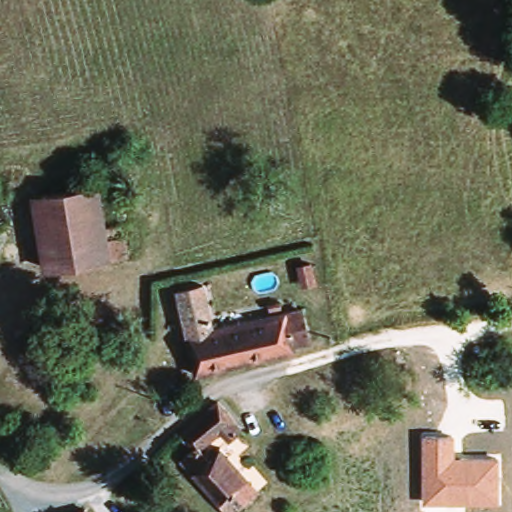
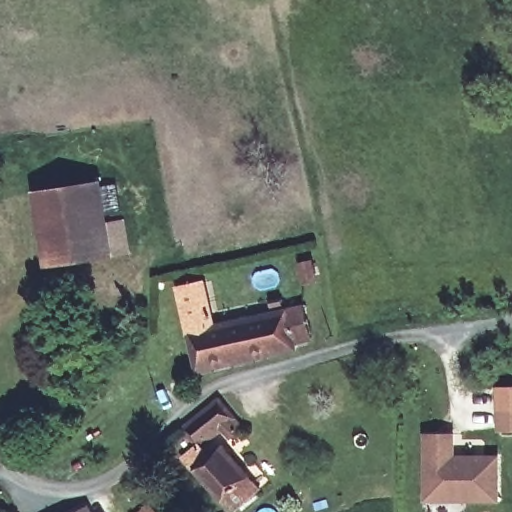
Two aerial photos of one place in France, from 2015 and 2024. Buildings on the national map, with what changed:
unchanged [(36,265),(39,262),(35,229),(32,195),(104,190),(105,229),(127,228),(130,258),(36,265)]
unchanged [(310,352),(213,369),(194,374),(180,297),(205,294),(213,326),(301,310),(310,352)]
new [(512,385),(512,433),(495,434),(493,386),(512,385)]
unchanged [(258,501),(235,512),(218,512),(180,445),(194,438),(190,427),(193,423),(225,407),(236,429),(230,434),(236,446),(232,452),(258,501)]
unchanged [(457,432),(455,454),(497,454),(497,504),(425,502),(425,433),(457,432)]
unchanged [(152,504),(158,512),(142,512),(152,504)]

